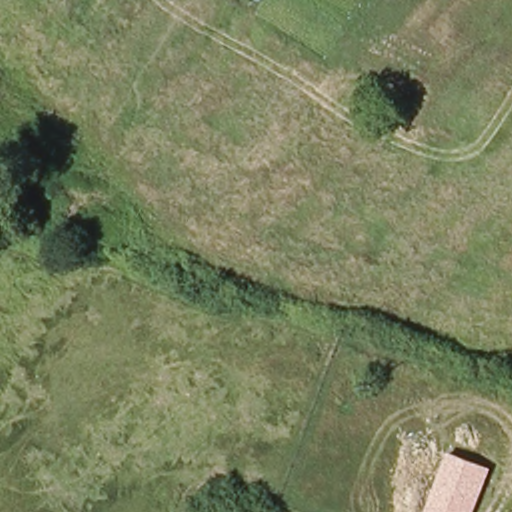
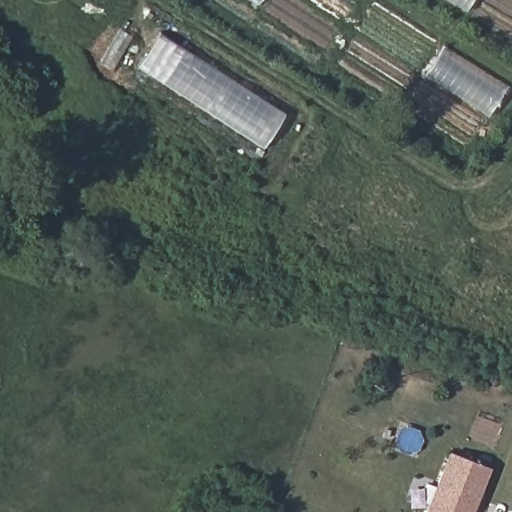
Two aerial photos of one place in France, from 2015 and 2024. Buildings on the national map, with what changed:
new [(136,67),(158,32),(284,113),(261,150),(136,67)]
unchanged [(475,512),(425,512),(449,453),(492,470),(475,512)]

